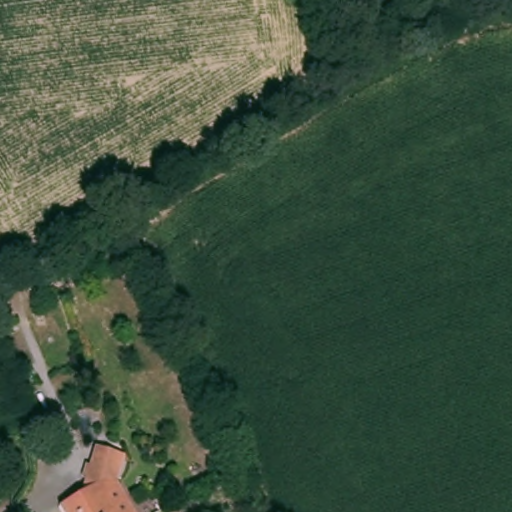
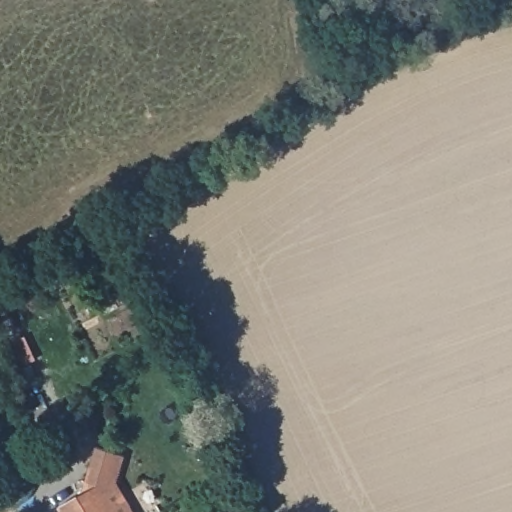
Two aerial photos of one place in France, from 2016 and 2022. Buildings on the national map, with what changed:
unchanged [(65,393),(77,421),(59,429),(47,401),(65,393)]
unchanged [(76,503),(100,492),(96,482),(106,450),(134,460),(125,487),(135,510),(136,512),(68,512),(66,508),(76,503)]

